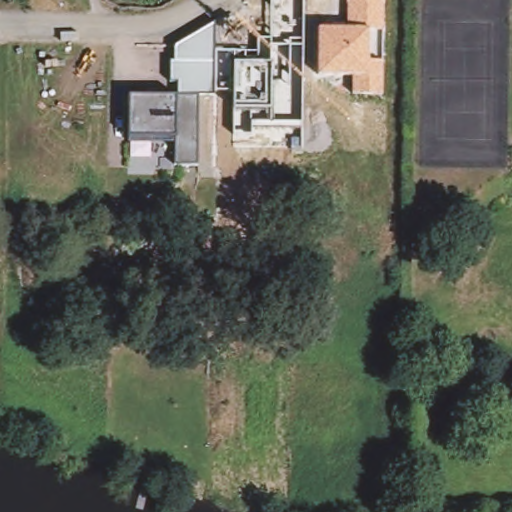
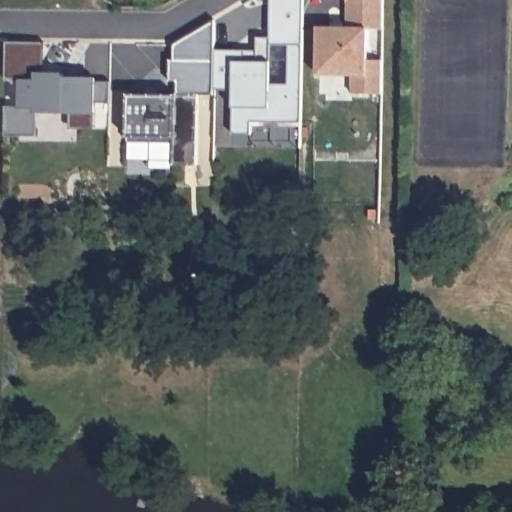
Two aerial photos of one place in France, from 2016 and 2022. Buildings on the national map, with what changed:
unchanged [(233,110),(231,95),(213,96),(213,50),(256,49),(255,39),(269,37),(270,0),(302,0),(301,124),(252,124),(252,134),(232,135),(233,110)]
unchanged [(353,79),(317,76),(318,27),(348,27),(347,0),(383,0),(383,30),(368,30),(367,62),(382,62),(382,96),(352,96),(353,79)]
unchanged [(173,168),(172,135),(129,136),(130,94),(175,95),(176,81),(169,80),(170,60),(175,60),(175,46),(213,23),(213,96),(198,96),(197,165),(173,168)]
new [(28,135),(3,134),(4,105),(19,105),(19,80),(4,80),(4,41),(42,42),(41,72),(61,72),(61,77),(94,77),(94,80),(109,80),(109,102),(94,102),(93,128),(75,128),(68,128),(68,115),(68,111),(36,110),(35,127),(35,135),(28,135)]

